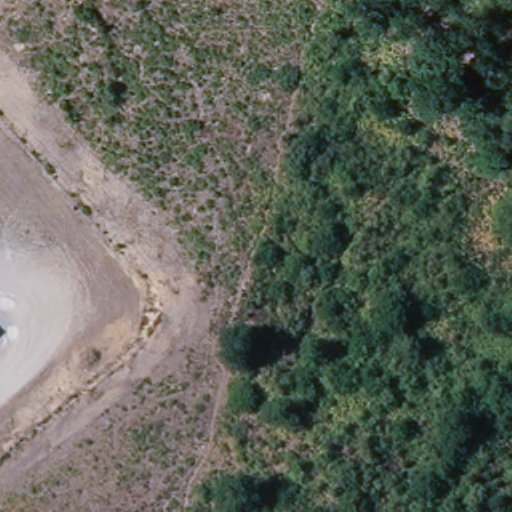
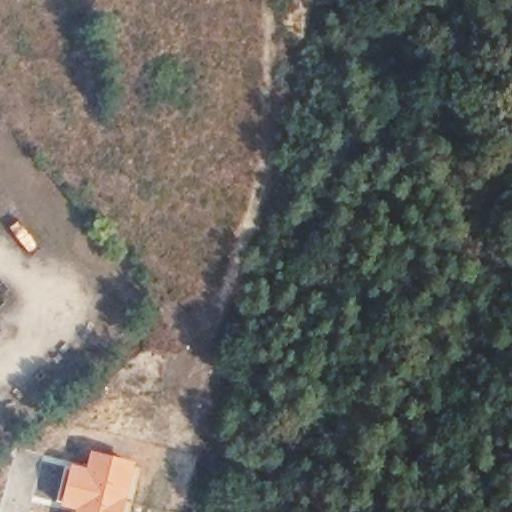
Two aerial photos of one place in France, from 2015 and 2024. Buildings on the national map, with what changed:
new [(62,507),(72,465),(88,468),(92,451),(137,462),(125,512),(77,512),(77,511),(62,507)]

